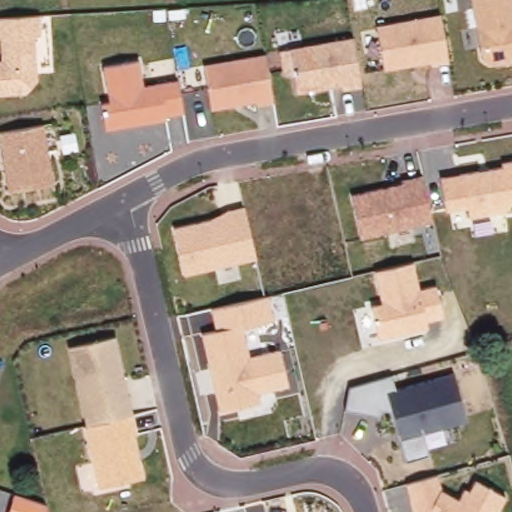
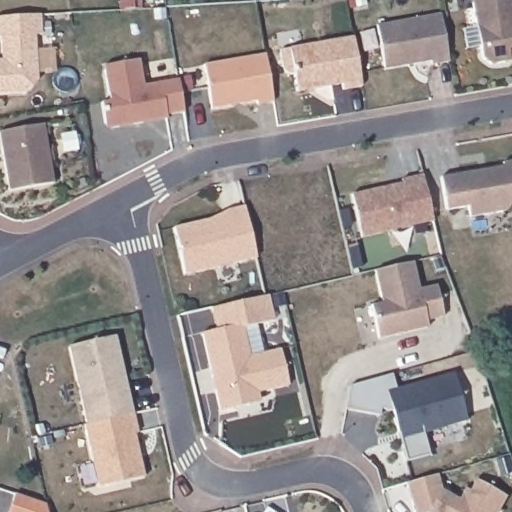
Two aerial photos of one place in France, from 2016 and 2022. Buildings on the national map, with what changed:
unchanged [(470,0),(512,0),(512,56),(508,62),(488,65),(482,59),(470,0)]
unchanged [(375,25),(441,14),(447,61),(431,64),(430,61),(384,70),(375,25)]
unchanged [(3,58),(3,37),(0,37),(0,18),(41,16),(41,36),(35,36),(36,83),(23,96),(0,97),(0,58),(3,58)]
unchanged [(292,76),(280,65),(278,49),(352,37),(359,87),(341,91),(340,85),(295,93),(292,76)]
unchanged [(205,64),(265,54),(273,103),(255,106),(254,103),(212,109),(205,64)]
unchanged [(102,103),(110,100),(102,68),(138,60),(142,88),(176,81),(182,114),(107,129),(102,103)]
unchanged [(0,142),(0,132),(44,124),(53,184),(9,193),(0,142)]
unchanged [(504,168),(503,163),(512,161),(512,205),(508,206),(504,212),(470,218),(467,208),(445,212),(439,179),(504,168)]
unchanged [(352,194),(399,184),(399,180),(420,175),(432,222),(361,237),(352,194)]
unchanged [(174,228),(211,219),(229,209),(243,208),(255,259),(187,275),(174,228)]
unchanged [(369,308),(382,304),(375,273),(413,264),(420,290),(436,287),(443,317),(426,321),(427,329),(378,340),(369,308)]
unchanged [(199,334),(216,330),(209,309),(266,297),(272,323),(242,329),(247,356),(279,349),(287,384),(255,392),(257,404),(220,412),(199,334)]
unchanged [(67,347),(114,337),(141,479),(98,487),(67,347)]
unchanged [(389,413),(345,408),(348,386),(393,376),(397,391),(454,378),(465,421),(422,434),(428,454),(404,461),(389,413)]
unchanged [(406,484),(439,476),(444,493),(457,499),(463,488),(470,490),(476,479),(505,496),(496,512),(413,512),(406,484)]
unchanged [(15,495),(46,506),(47,512),(9,512),(15,495)]

